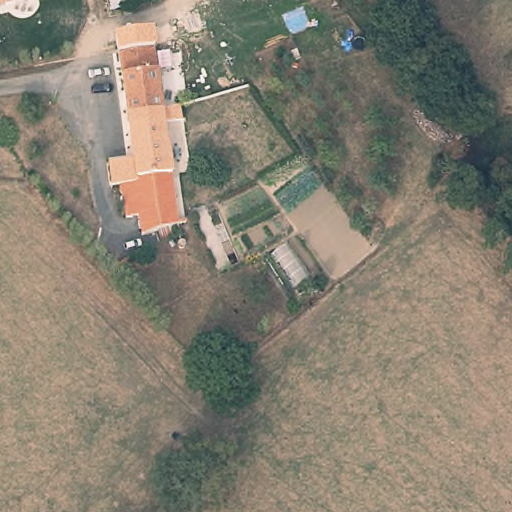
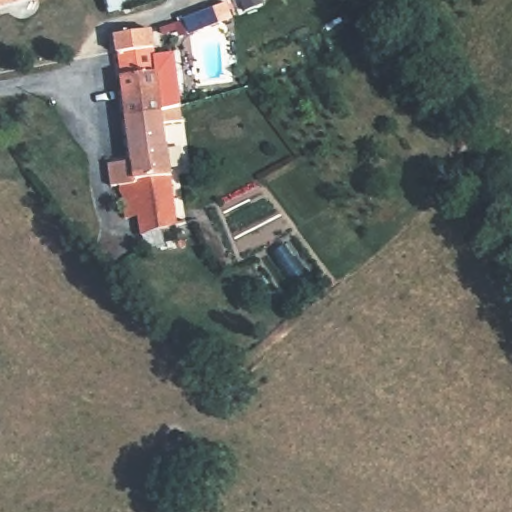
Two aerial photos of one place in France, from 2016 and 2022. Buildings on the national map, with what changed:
unchanged [(2,0),(0,1),(0,0),(2,0)]
unchanged [(123,7),(121,1),(108,5),(106,0),(128,0),(129,5),(123,7)]
unchanged [(120,47),(153,44),(158,82),(163,111),(127,115),(127,113),(120,47)]
unchanged [(134,174),(132,157),(127,115),(163,111),(166,139),(169,142),(172,171),(134,174)]
unchanged [(158,224),(141,228),(139,210),(126,211),(123,187),(119,187),(118,182),(110,182),(108,159),(132,157),(134,174),(172,171),(176,216),(195,212),(203,249),(167,257),(158,224)]

